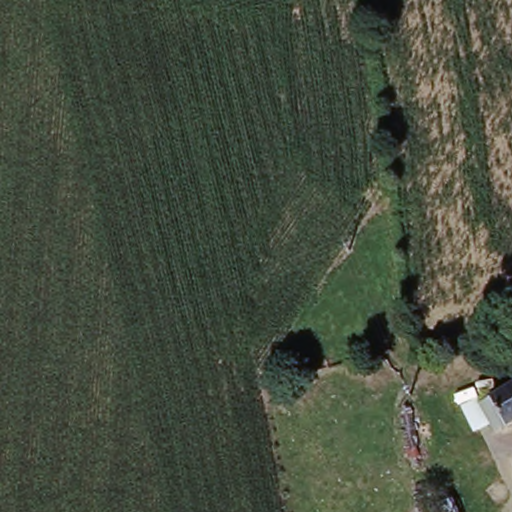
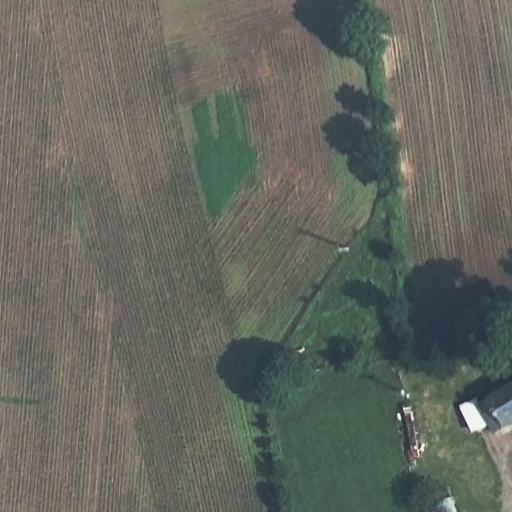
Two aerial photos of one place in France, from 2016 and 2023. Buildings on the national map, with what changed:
unchanged [(512,417),(495,426),(481,401),(512,385),(512,417)]

